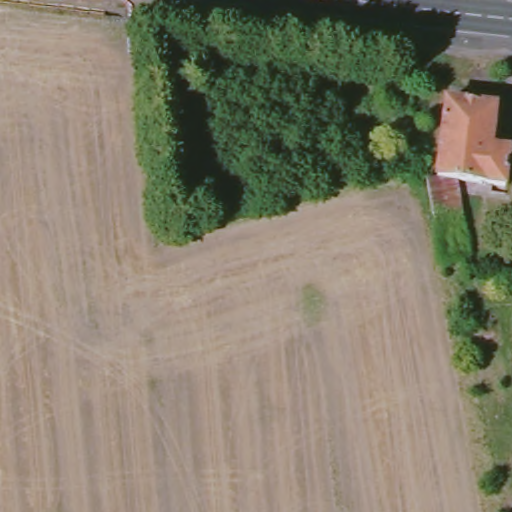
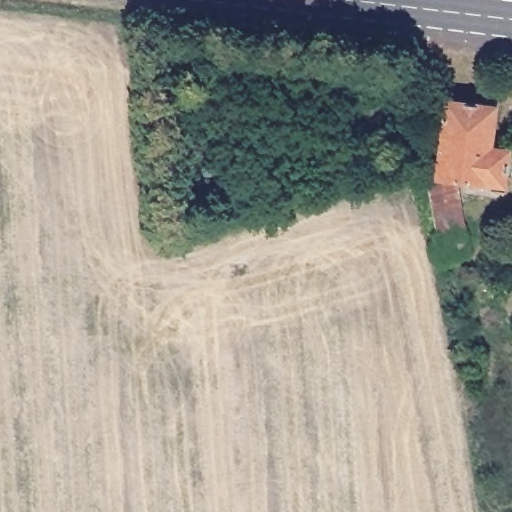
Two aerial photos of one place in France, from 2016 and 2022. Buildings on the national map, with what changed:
unchanged [(427,181),(441,180),(450,102),(499,106),(493,149),(512,149),(512,155),(505,188),(459,181),(468,236),(439,243),(427,181)]

